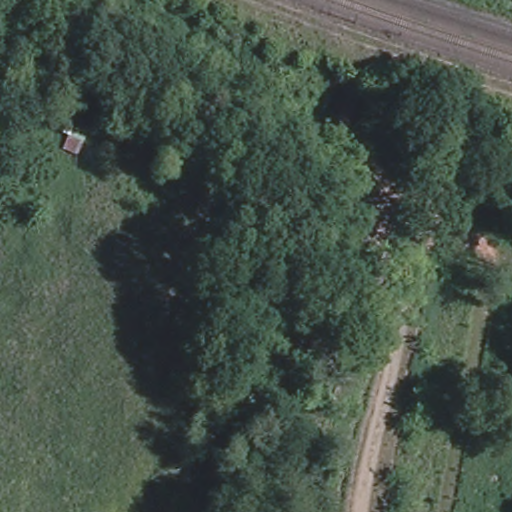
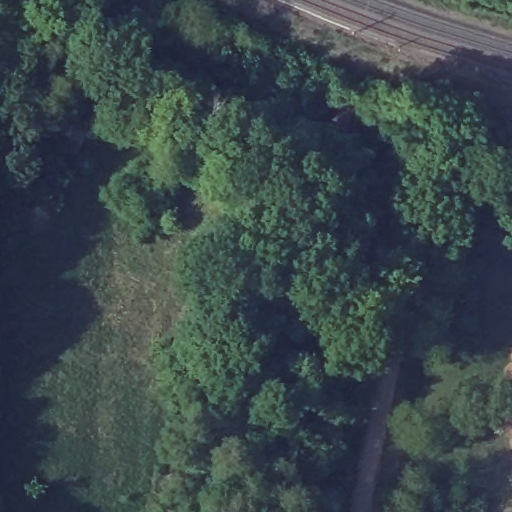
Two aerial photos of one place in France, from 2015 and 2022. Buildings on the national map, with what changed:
unchanged [(91,129),(79,151),(64,145),(76,119),(91,129)]

